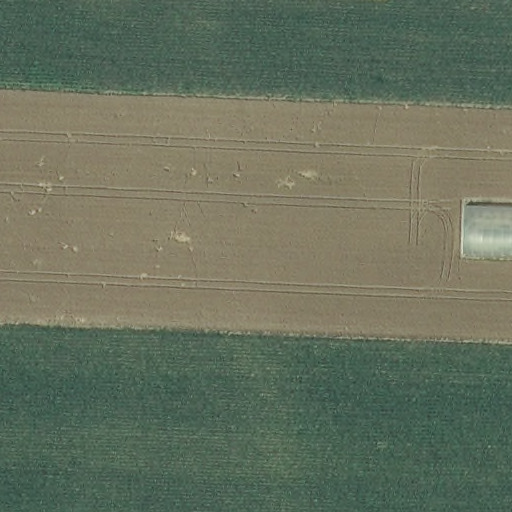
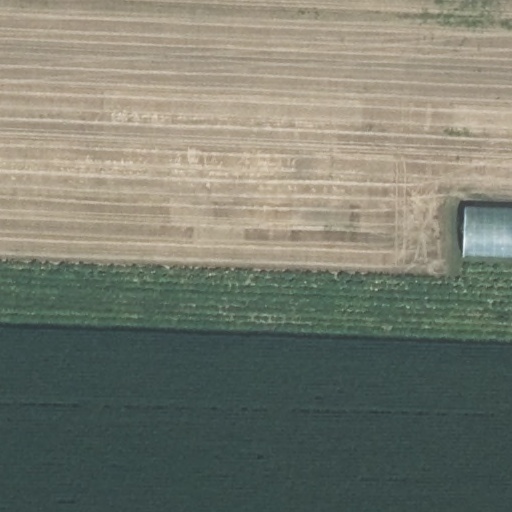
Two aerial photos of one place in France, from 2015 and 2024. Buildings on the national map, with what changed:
unchanged [(467,210),(512,211),(512,260),(465,258),(467,210)]

